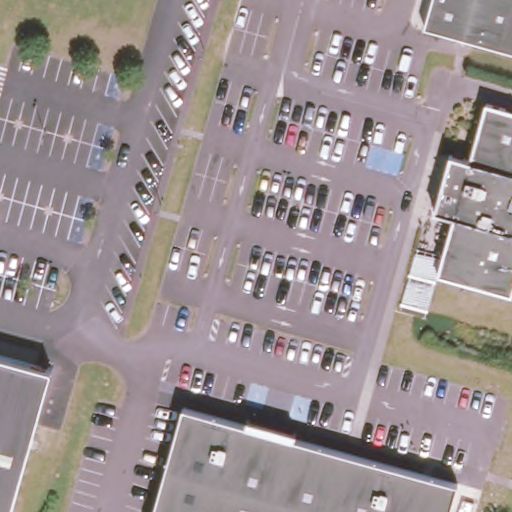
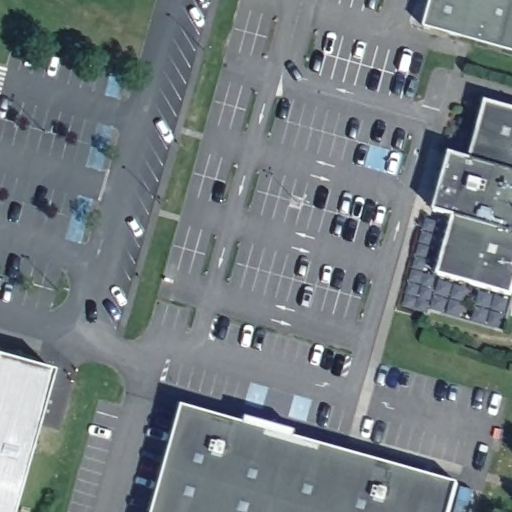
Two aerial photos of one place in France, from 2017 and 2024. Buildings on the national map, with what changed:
unchanged [(512,0),(512,52),(422,27),(429,0),(512,0)]
unchanged [(507,292),(506,295),(432,274),(448,217),(441,216),(428,211),(444,154),(457,158),(464,160),(480,102),(512,111),(512,294),(507,292)]
unchanged [(0,355),(46,368),(6,512),(0,512),(0,355)]
unchanged [(246,418),(295,432),(294,438),(457,483),(448,512),(152,512),(182,407),(244,424),(246,418)]

